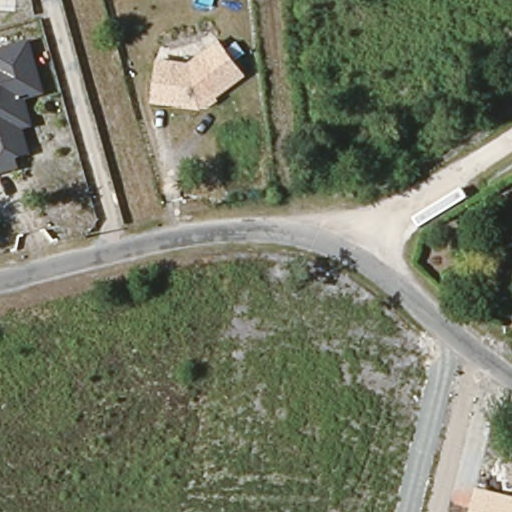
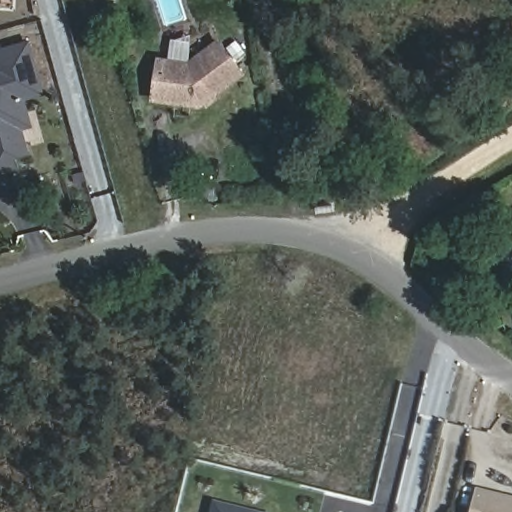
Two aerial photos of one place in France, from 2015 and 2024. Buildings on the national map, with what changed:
unchanged [(219,95),(223,99),(208,109),(205,105),(200,109),(149,103),(155,57),(190,62),(218,39),(246,75),(219,95)]
unchanged [(34,129),(22,131),(29,155),(16,159),(20,171),(0,177),(0,47),(29,40),(46,95),(25,101),(34,129)]
unchanged [(470,512),(476,490),(512,499),(512,512),(470,512)]
new [(258,512),(213,512),(215,501),(258,512)]

